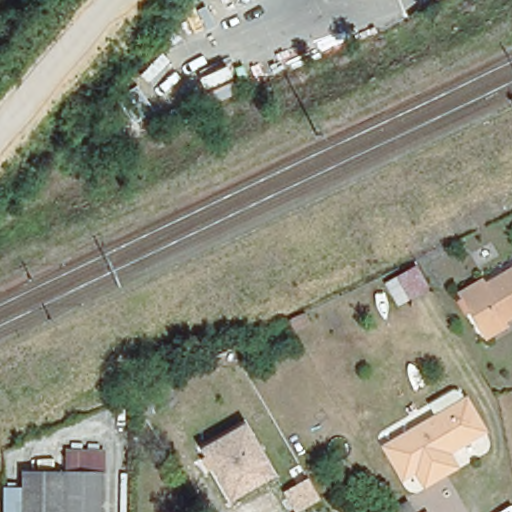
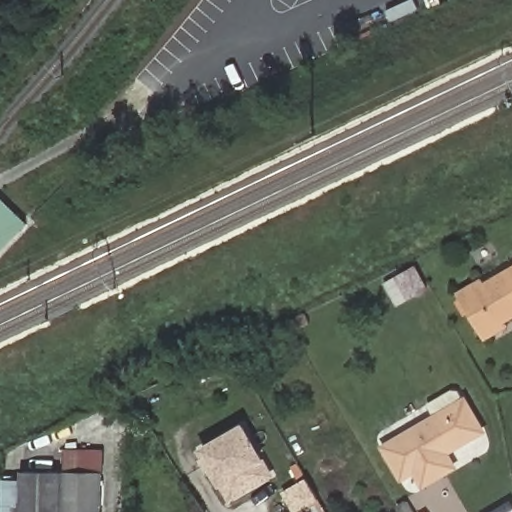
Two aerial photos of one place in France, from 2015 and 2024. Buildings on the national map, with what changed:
new [(23,229),(0,251),(0,205),(23,229)]
unchanged [(395,277),(413,267),(425,289),(407,299),(395,277)]
unchanged [(484,337),(465,302),(488,289),(490,294),(512,282),(512,327),(507,329),(510,335),(489,346),(484,337)]
unchanged [(484,437),(448,458),(455,470),(424,487),(418,476),(405,483),(387,451),(466,405),(484,437)]
unchanged [(275,478),(233,501),(222,485),(202,448),(245,424),(266,461),(275,478)]
unchanged [(26,450),(104,453),(103,477),(26,475),(26,450)]
unchanged [(103,477),(103,512),(25,512),(26,475),(103,477)]
unchanged [(321,502),(302,512),(295,512),(282,490),(307,477),(321,502)]
new [(512,512),(496,512),(512,502),(512,512)]
unchanged [(416,510),(417,512),(413,512),(416,510)]

